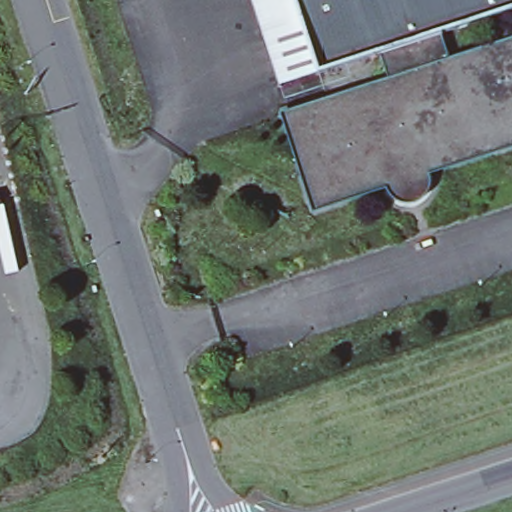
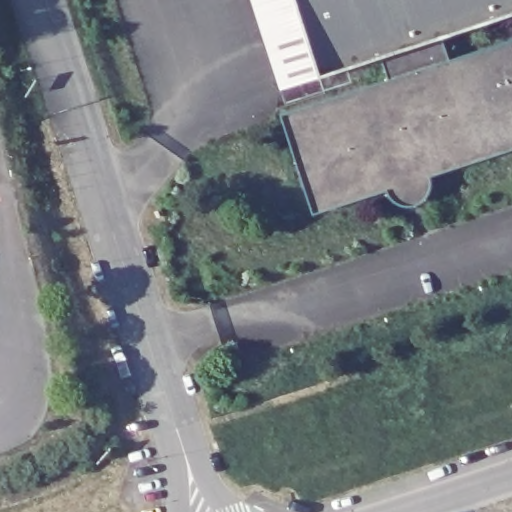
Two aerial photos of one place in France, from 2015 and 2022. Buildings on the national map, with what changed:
unchanged [(252,0),(292,0),(317,78),(281,89),(252,0)]
unchanged [(380,57),(317,78),(292,0),(512,0),(512,15),(441,38),(380,57)]
unchanged [(396,200),(391,185),(315,210),(286,120),(390,87),(380,57),(441,38),(450,67),(512,48),(512,147),(418,176),(423,192),(396,200)]

